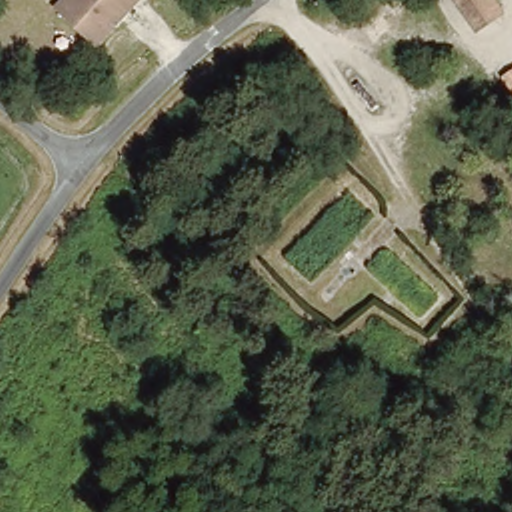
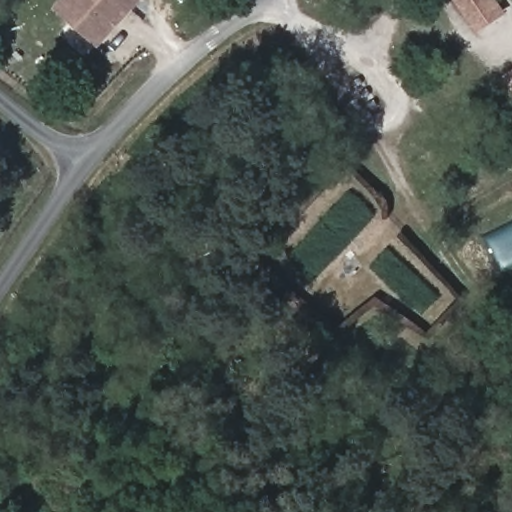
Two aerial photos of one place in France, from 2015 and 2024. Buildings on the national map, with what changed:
unchanged [(135,0),(97,40),(57,4),(62,0),(135,0)]
unchanged [(477,27),(459,0),(492,0),(500,12),(477,27)]
unchanged [(502,78),(512,71),(512,90),(502,78)]

